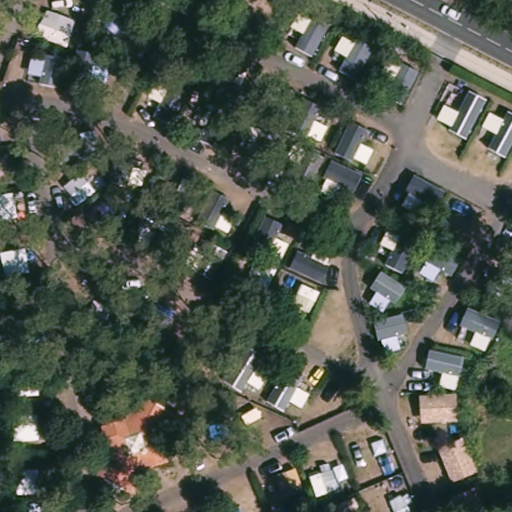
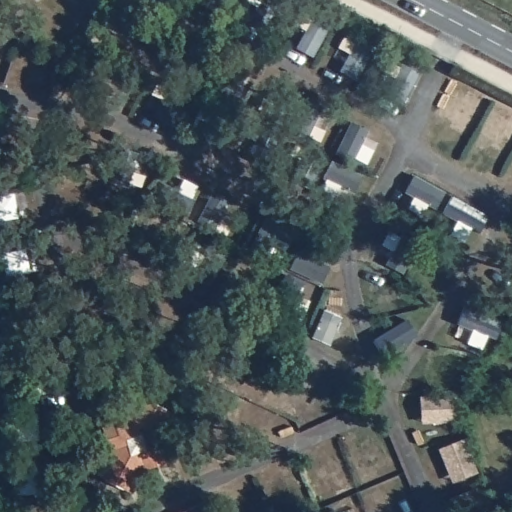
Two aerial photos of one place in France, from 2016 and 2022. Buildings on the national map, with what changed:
unchanged [(106,456),(100,434),(105,428),(125,425),(139,400),(175,418),(163,442),(169,461),(165,470),(144,476),(131,500),(94,479),(106,456)]

